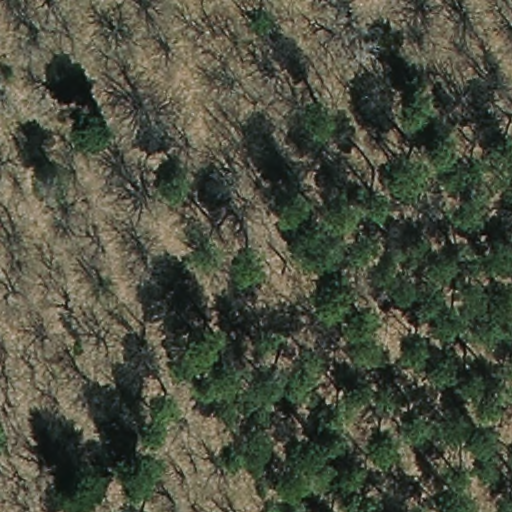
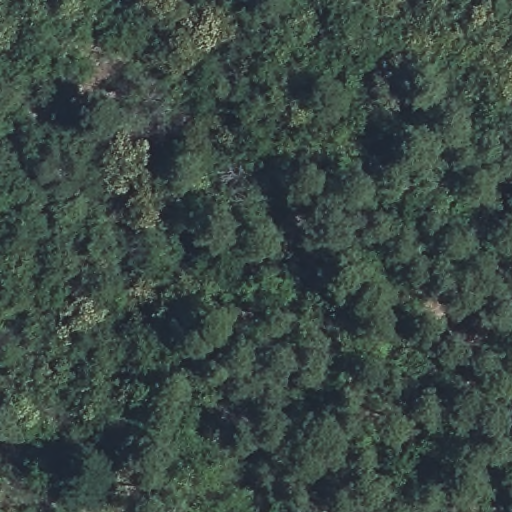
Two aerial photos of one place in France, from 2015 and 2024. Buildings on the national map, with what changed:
[]

